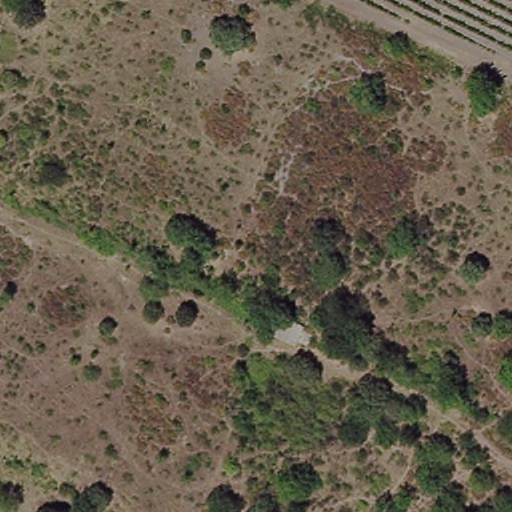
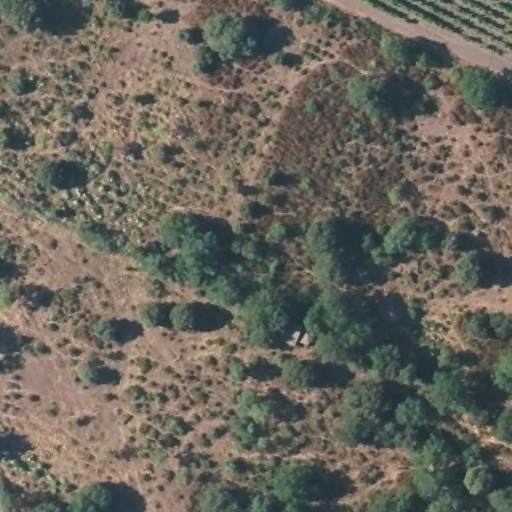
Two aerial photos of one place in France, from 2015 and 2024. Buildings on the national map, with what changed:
unchanged [(298,343),(276,334),(284,317),(304,326),(299,338),(298,343)]

